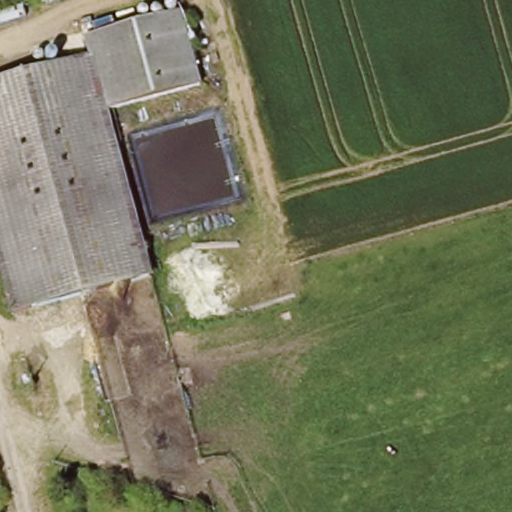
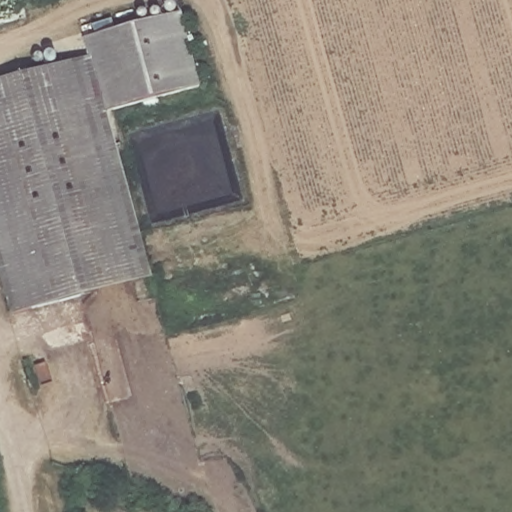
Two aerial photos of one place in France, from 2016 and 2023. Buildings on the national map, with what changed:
unchanged [(86,60),(79,41),(174,15),(195,90),(100,115),(146,281),(9,320),(0,289),(0,85),(86,60)]

